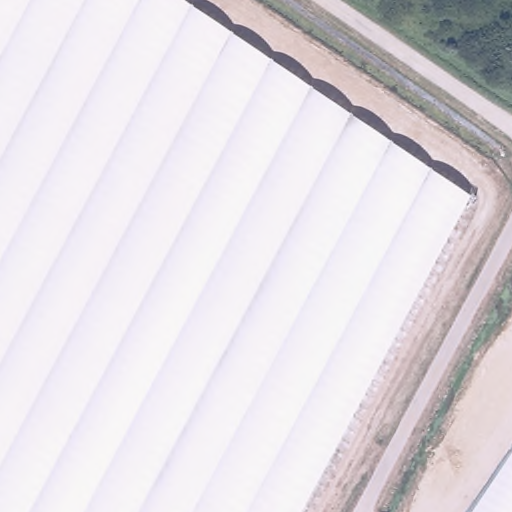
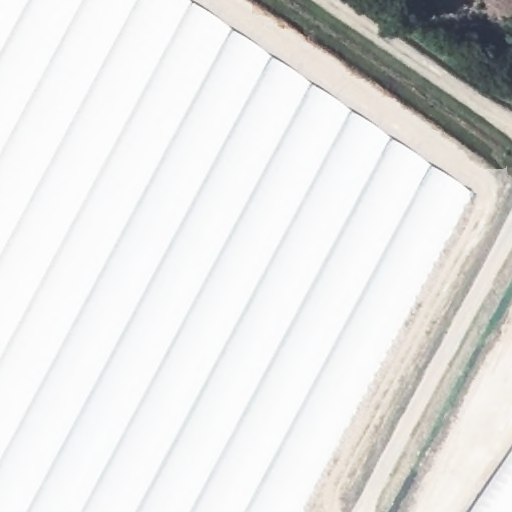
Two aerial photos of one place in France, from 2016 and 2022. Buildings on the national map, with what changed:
unchanged [(300,512),(0,512),(0,0),(183,0),(469,195),(300,512)]
unchanged [(487,512),(512,475),(512,512),(487,512)]

